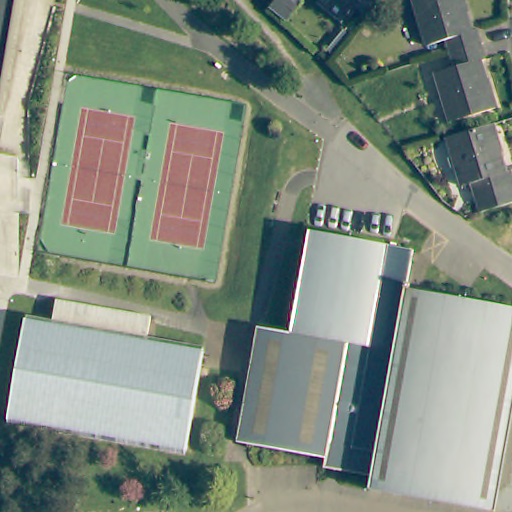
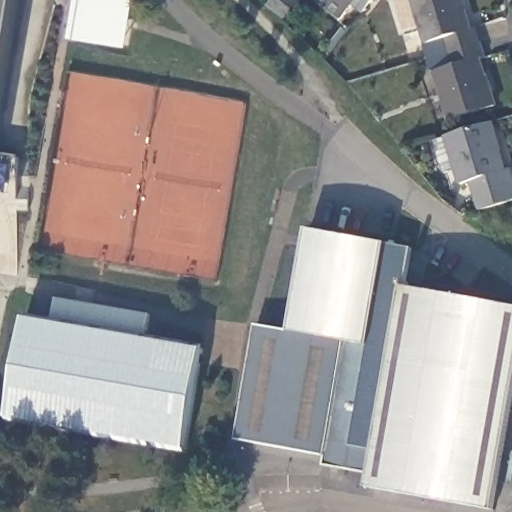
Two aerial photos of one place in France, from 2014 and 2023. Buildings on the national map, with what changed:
unchanged [(0,118),(0,0),(20,0),(0,118)]
new [(130,51),(70,40),(76,0),(138,0),(130,51)]
unchanged [(269,0),(293,0),(283,12),(268,1),(269,0)]
unchanged [(341,15),(321,0),(353,0),(341,15)]
unchanged [(364,8),(353,0),(370,0),(364,8)]
unchanged [(442,40),(425,45),(411,0),(460,0),(461,2),(455,3),(458,12),(462,11),(468,30),(473,29),(478,44),(447,54),(442,40)]
unchanged [(451,67),(447,54),(478,44),(482,59),(477,61),(483,80),(479,81),(482,89),(488,88),(494,106),(448,120),(433,73),(451,67)]
unchanged [(497,143),(491,145),(494,153),(498,152),(505,171),(509,170),(512,181),(512,202),(487,208),(477,181),(460,186),(445,138),(491,124),(497,143)]
unchanged [(290,329),(310,228),(416,248),(408,288),(512,308),(512,411),(492,512),(487,512),(371,488),(374,473),(323,464),(325,455),(236,437),(258,323),(290,329)]
unchanged [(28,323),(54,328),(60,302),(153,319),(148,345),(206,355),(189,454),(10,422),(28,323)]

